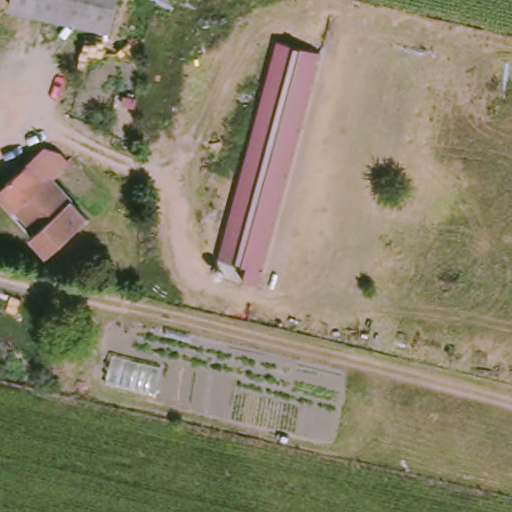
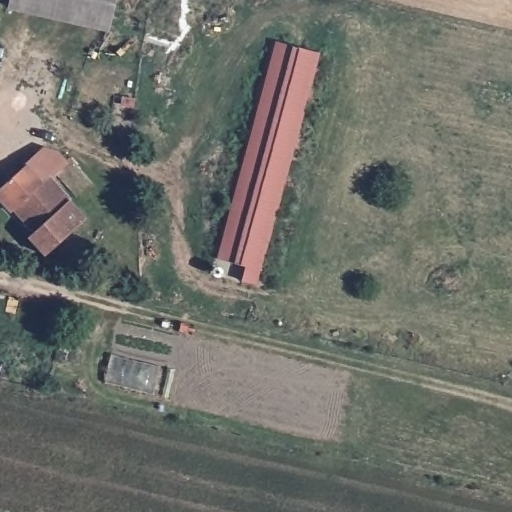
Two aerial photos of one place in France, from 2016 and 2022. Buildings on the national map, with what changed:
unchanged [(114,30),(12,8),(13,0),(120,0),(114,30)]
unchanged [(321,50),(259,282),(245,279),(248,264),(224,258),(282,40),(321,50)]
unchanged [(30,162),(47,181),(57,174),(94,220),(48,256),(35,238),(39,234),(20,210),(14,214),(0,197),(0,188),(30,162)]

